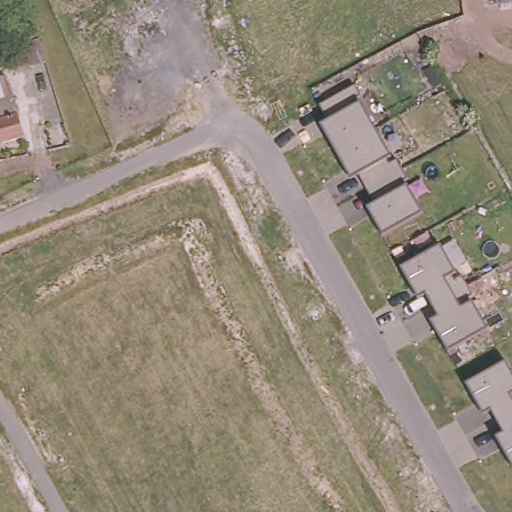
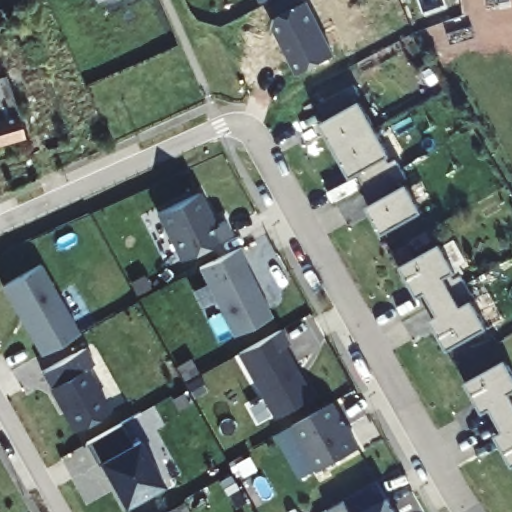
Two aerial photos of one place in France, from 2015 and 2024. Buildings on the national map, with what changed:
new [(335,54),(297,73),(272,29),(276,17),(308,1),(335,54)]
demolished [(0,44),(0,31),(2,30),(6,42),(0,44)]
unchanged [(25,41),(39,36),(45,59),(31,64),(25,41)]
unchanged [(19,135),(0,141),(0,76),(2,75),(19,135)]
unchanged [(322,104),(348,90),(356,104),(417,210),(381,230),(320,125),(332,118),(322,104)]
new [(215,224),(224,220),(231,233),(191,253),(167,206),(198,190),(215,224)]
new [(241,245),(247,260),(245,261),(272,315),(232,334),(200,267),(241,245)]
unchanged [(481,330),(446,348),(402,266),(437,247),(481,330)]
new [(42,352),(7,289),(42,268),(79,331),(42,352)]
new [(282,343),(311,393),(274,415),(239,352),(282,328),(289,340),(282,343)]
new [(87,365),(111,409),(75,429),(43,370),(86,346),(94,361),(87,365)]
unchanged [(512,382),(512,466),(511,466),(465,381),(502,362),(512,382)]
new [(317,471),(292,425),(335,401),(360,446),(317,471)]
new [(126,505),(102,460),(98,462),(87,442),(121,424),(130,445),(141,437),(165,481),(126,505)]
new [(362,512),(387,498),(394,512),(362,512)]

